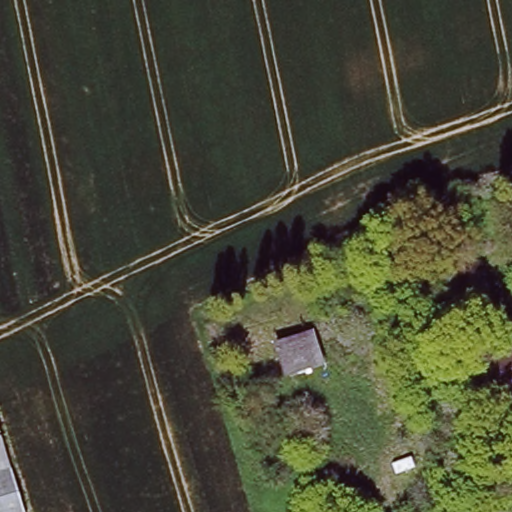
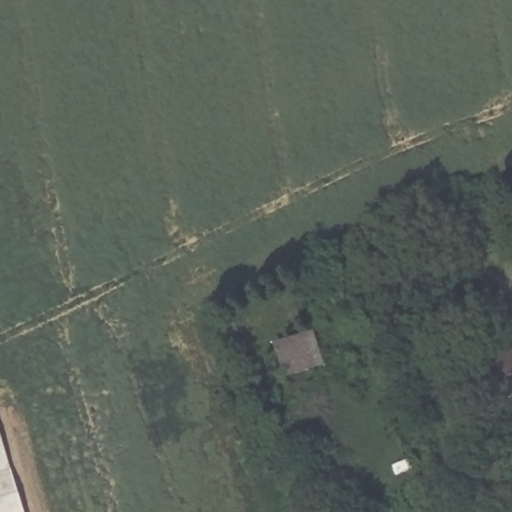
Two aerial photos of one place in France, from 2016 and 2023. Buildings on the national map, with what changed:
unchanged [(277,345),(313,333),(322,362),(286,373),(277,345)]
unchanged [(482,362),(512,353),(512,391),(493,397),(482,362)]
unchanged [(0,512),(0,435),(23,512),(0,512)]

